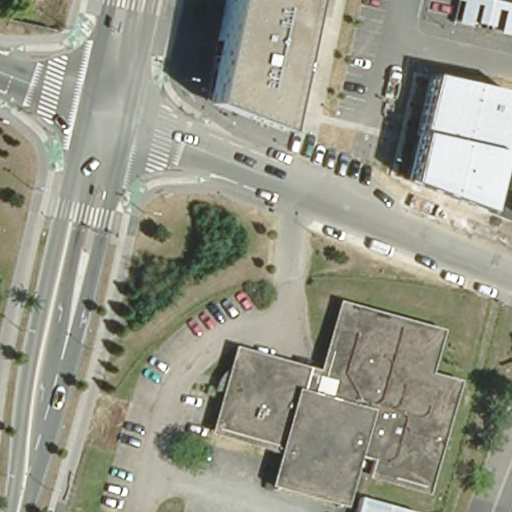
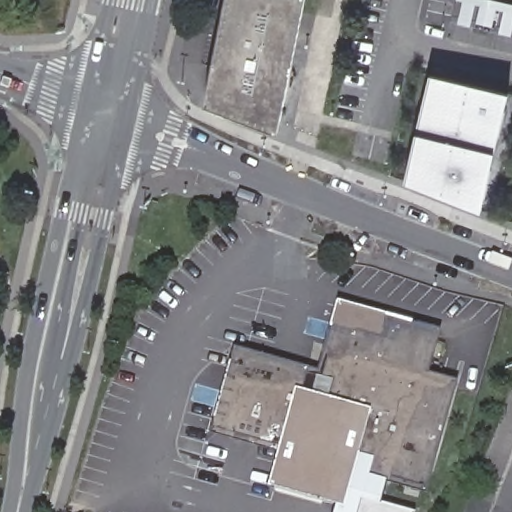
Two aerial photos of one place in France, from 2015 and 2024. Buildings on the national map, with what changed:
unchanged [(278,131),(207,104),(228,0),(306,0),(278,131)]
unchanged [(496,151),(482,211),(405,182),(416,133),(430,74),(509,94),(496,151)]
unchanged [(274,488),(276,478),(282,451),(216,434),(237,354),(321,375),(327,352),(339,306),(429,331),(418,372),(454,381),(425,496),(365,480),(370,460),(352,455),(341,495),(339,505),(274,488)]
unchanged [(363,512),(368,492),(423,508),(422,512),(363,512)]

